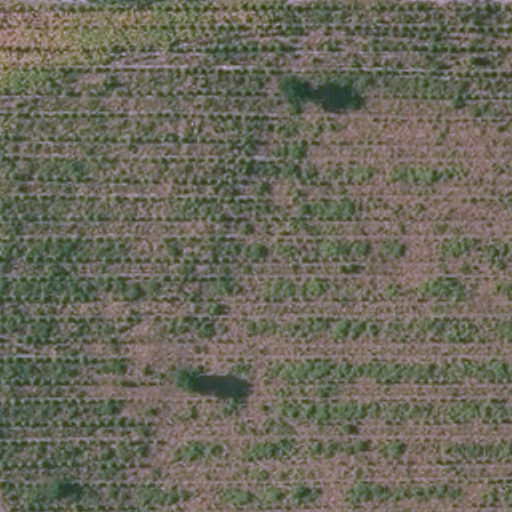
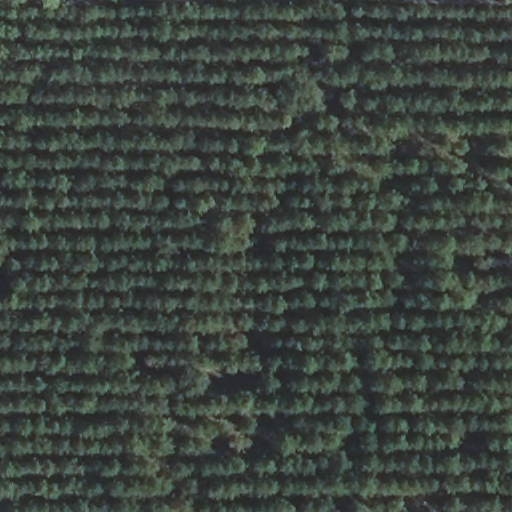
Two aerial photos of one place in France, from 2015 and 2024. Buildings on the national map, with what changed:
[]

